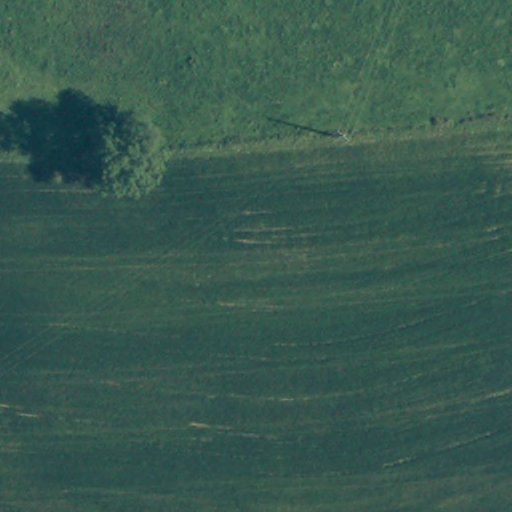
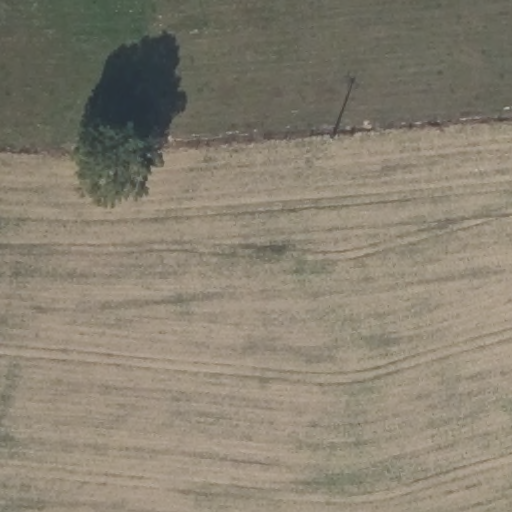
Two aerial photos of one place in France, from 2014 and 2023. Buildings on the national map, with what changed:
[]

